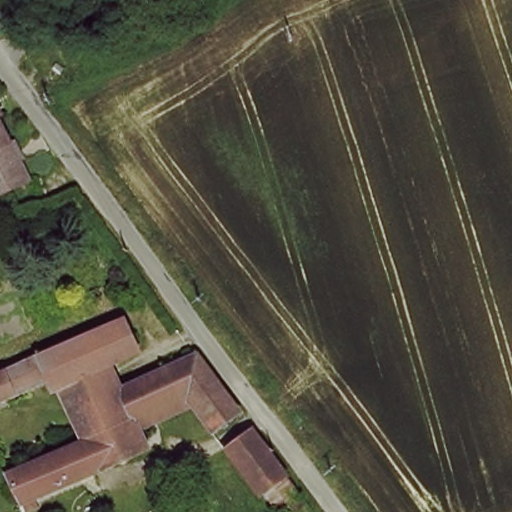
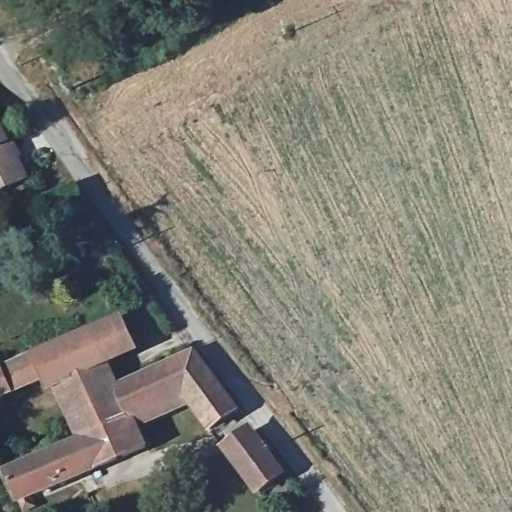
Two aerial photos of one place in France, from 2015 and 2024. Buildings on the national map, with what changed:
unchanged [(0,120),(0,113),(3,119),(0,120)]
unchanged [(0,191),(0,124),(27,179),(0,191)]
unchanged [(38,378),(0,400),(0,372),(51,344),(106,315),(122,343),(95,355),(98,359),(50,382),(42,385),(38,378)]
unchanged [(197,354),(237,411),(210,431),(191,406),(135,429),(146,452),(29,501),(33,511),(31,512),(18,512),(2,481),(0,479),(0,477),(5,475),(10,473),(15,471),(41,459),(83,441),(88,438),(130,421),(120,401),(110,383),(193,356),(197,354)]
unchanged [(56,394),(50,382),(98,359),(110,383),(120,401),(130,421),(88,438),(83,441),(56,394)]
unchanged [(286,482),(293,490),(265,511),(226,455),(253,434),(286,482)]

